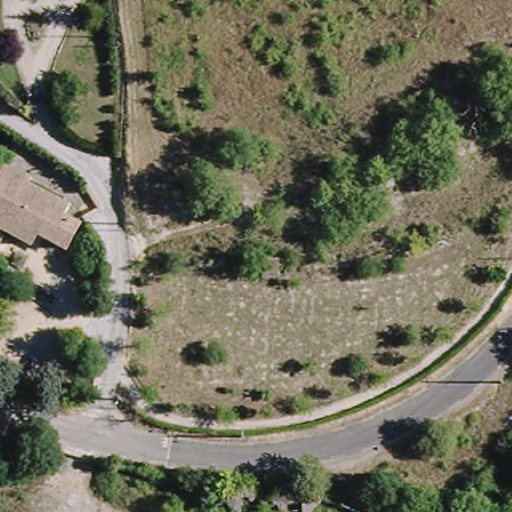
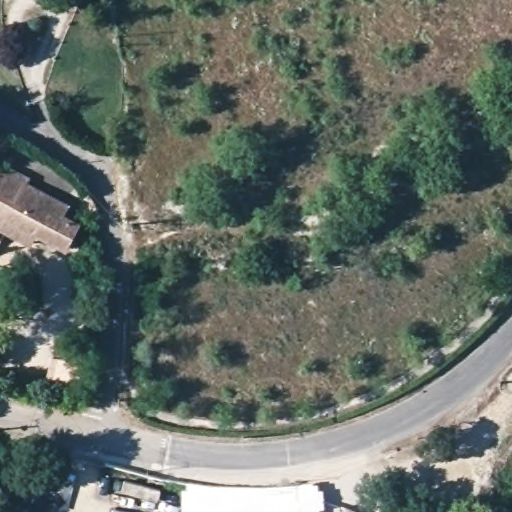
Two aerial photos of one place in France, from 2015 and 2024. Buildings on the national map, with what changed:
unchanged [(29,170),(25,182),(69,206),(67,219),(75,222),(52,270),(23,250),(25,244),(0,229),(0,169),(7,157),(29,170)]
unchanged [(275,260),(274,278),(257,276),(257,258),(275,260)]
new [(185,489),(186,482),(233,485),(297,483),(312,481),(312,484),(317,484),(317,490),(322,489),(323,508),(315,510),(315,512),(181,512),(182,490),(185,489)]
unchanged [(182,485),(182,496),(165,495),(166,484),(182,485)]

